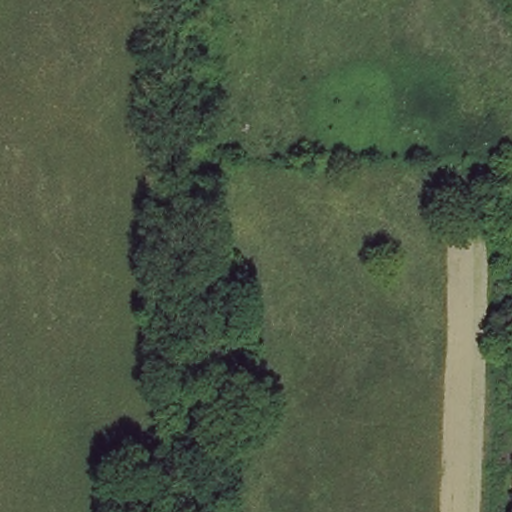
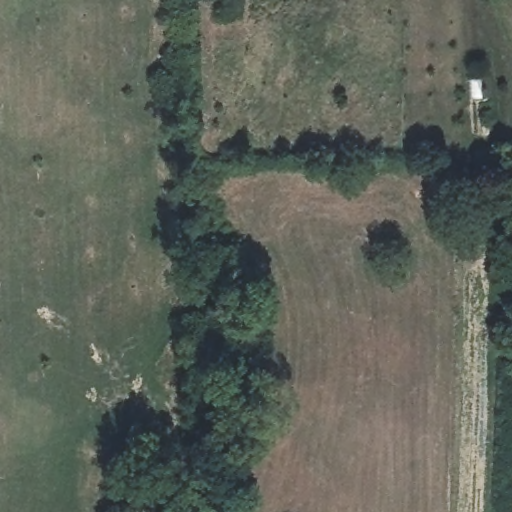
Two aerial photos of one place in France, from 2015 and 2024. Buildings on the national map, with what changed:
[]

